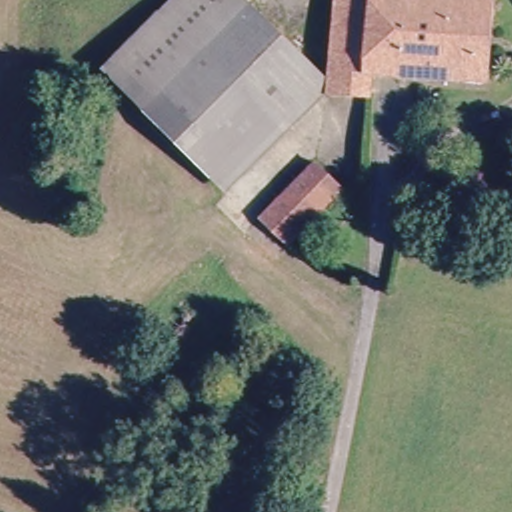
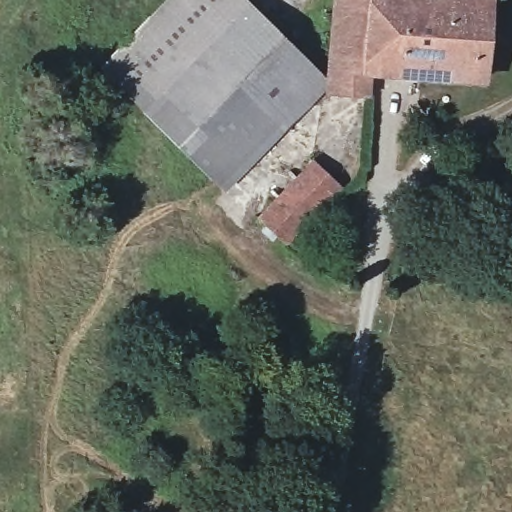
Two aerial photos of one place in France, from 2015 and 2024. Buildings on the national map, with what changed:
unchanged [(100,61),(162,0),(245,0),(142,102),(100,61)]
unchanged [(217,176),(142,102),(245,0),(248,0),(320,71),(217,176)]
unchanged [(354,0),(347,70),(345,84),(323,82),(331,0),(354,0)]
unchanged [(347,70),(354,0),(475,0),(466,85),(347,70)]
unchanged [(255,215),(308,158),(335,189),(283,244),(255,215)]

